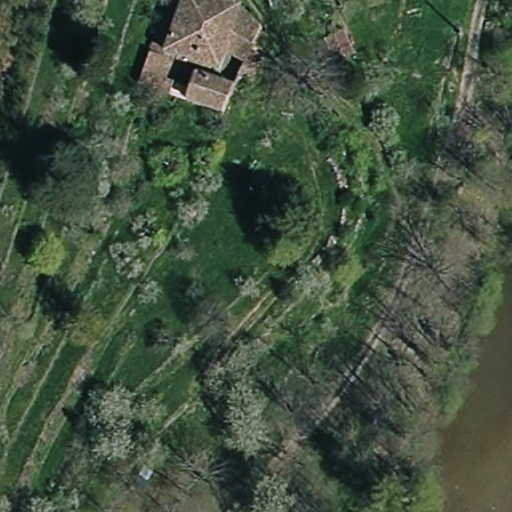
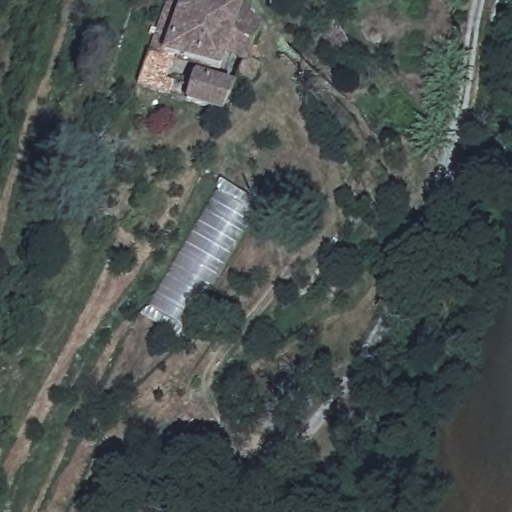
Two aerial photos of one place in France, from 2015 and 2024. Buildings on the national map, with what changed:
unchanged [(225,61),(219,74),(167,52),(165,57),(153,52),(160,37),(164,39),(180,0),(213,0),(246,11),(262,38),(247,71),(225,61)]
new [(345,32),(354,51),(333,62),(322,42),(315,30),(337,18),(345,32)]
unchanged [(236,96),(225,122),(143,80),(138,78),(149,54),(163,61),(159,71),(196,89),(200,80),(236,96)]
unchanged [(239,88),(247,71),(260,77),(252,93),(239,88)]
new [(216,188),(257,213),(189,327),(147,303),(216,188)]

